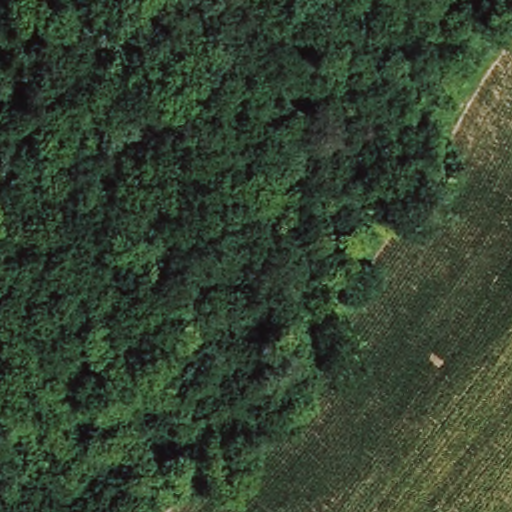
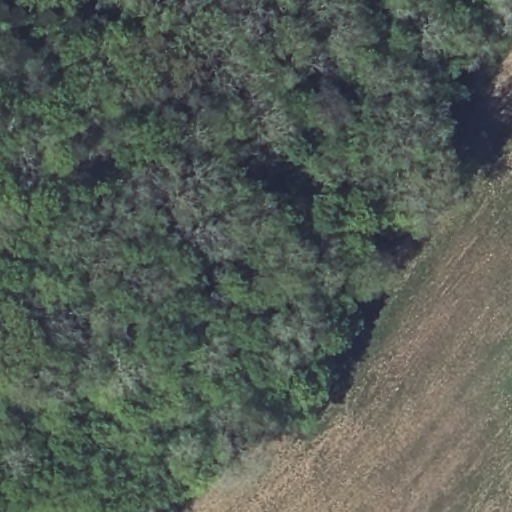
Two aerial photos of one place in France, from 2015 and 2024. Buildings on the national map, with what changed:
[]

